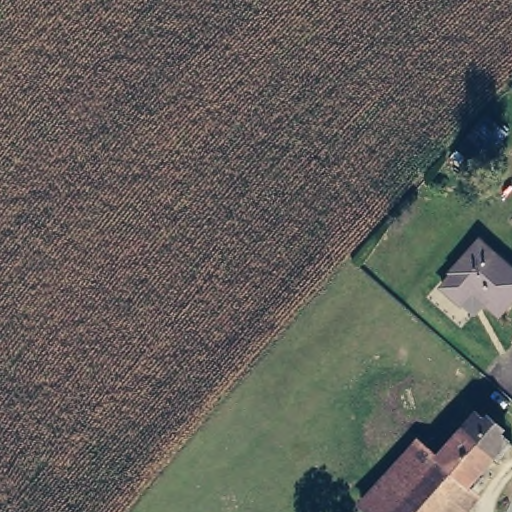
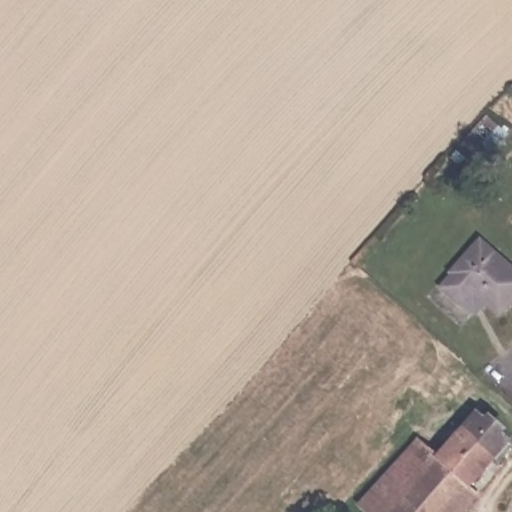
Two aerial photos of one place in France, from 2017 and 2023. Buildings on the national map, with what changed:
unchanged [(461,305),(442,291),(453,277),(448,273),(473,238),(512,267),(512,294),(501,310),(486,301),(473,291),(461,305)]
unchanged [(483,499),(471,512),(368,512),(358,502),(418,436),(439,451),(477,406),(512,438),(512,439),(469,487),(483,499)]

